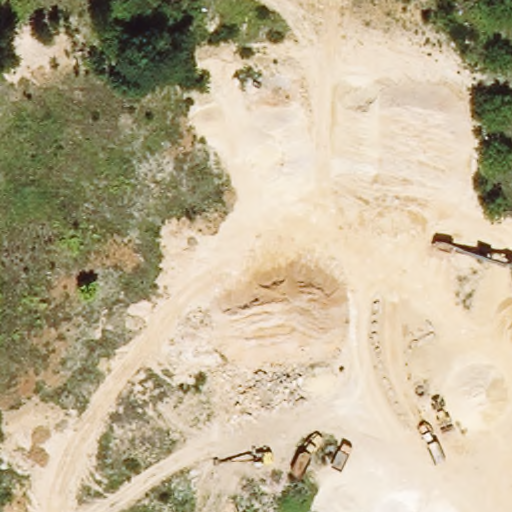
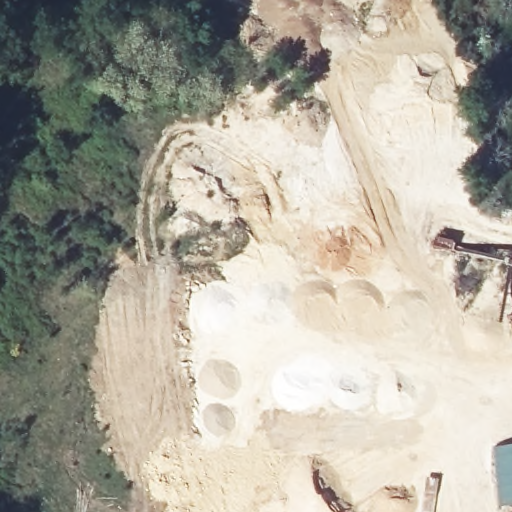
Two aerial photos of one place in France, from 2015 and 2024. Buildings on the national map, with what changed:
new [(512,446),(512,505),(498,507),(493,447),(512,446)]

